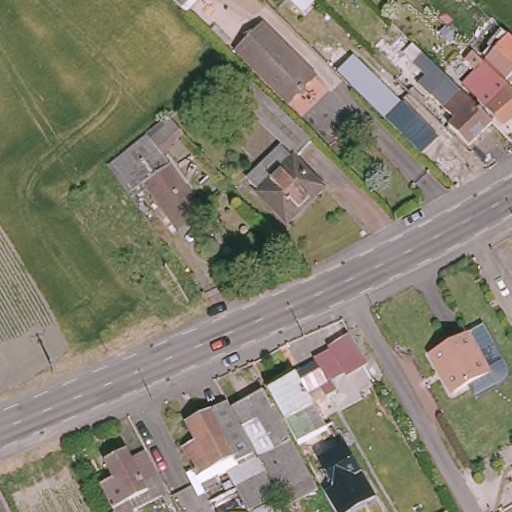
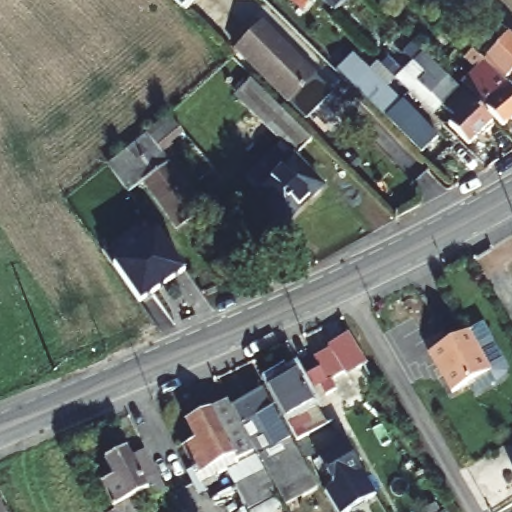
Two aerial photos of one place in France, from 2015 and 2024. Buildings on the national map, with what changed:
unchanged [(171,0),(188,0),(180,8),(171,0)]
unchanged [(417,27),(431,12),(445,25),(430,40),(417,27)]
unchanged [(260,24),(311,75),(285,101),(233,51),(260,24)]
unchanged [(495,65),(512,48),(512,81),(495,65)]
unchanged [(495,65),(512,81),(512,127),(487,102),(495,93),(483,81),(488,75),(472,59),(480,50),(495,65)]
unchanged [(413,90),(418,85),(423,91),(436,79),(425,67),(434,57),(505,127),(481,150),(460,129),(466,123),(444,101),(435,110),(413,90)]
unchanged [(350,87),(367,69),(372,74),(375,71),(380,76),(377,78),(435,136),(420,152),(385,117),(382,120),(350,87)]
unchanged [(246,105),(260,91),(308,140),(294,153),(246,105)]
unchanged [(148,141),(154,149),(157,147),(201,208),(175,227),(141,181),(126,192),(105,163),(165,114),(172,122),(148,141)]
unchanged [(255,188),(246,179),(280,147),(318,186),(283,219),(254,190),(255,188)]
new [(183,270),(139,302),(112,266),(156,234),(183,270)]
unchanged [(315,355),(313,352),(328,344),(327,342),(338,335),(347,330),(363,355),(355,361),(356,364),(345,371),(342,366),(325,376),(315,382),(313,382),(301,362),(303,361),(315,355)]
unchanged [(486,371),(450,391),(437,367),(435,367),(427,352),(465,332),(486,371)]
unchanged [(266,383),(295,368),(325,421),(296,437),(266,383)]
unchanged [(230,404),(261,387),(316,485),(285,503),(230,404)]
unchanged [(201,483),(197,486),(188,467),(195,464),(185,444),(197,437),(188,420),(226,400),(252,447),(235,457),(235,459),(216,469),(218,472),(200,482),(201,483)]
unchanged [(156,495),(136,505),(140,512),(110,512),(120,507),(106,480),(120,473),(110,455),(131,445),(135,453),(150,446),(170,485),(155,492),(156,495)]
unchanged [(363,472),(370,485),(377,497),(351,512),(345,512),(332,489),(335,487),(320,460),(347,445),(363,472)]
unchanged [(248,506),(227,467),(255,452),(276,491),(248,506)]
unchanged [(250,509),(275,495),(281,507),(272,512),(252,512),(250,509)]

